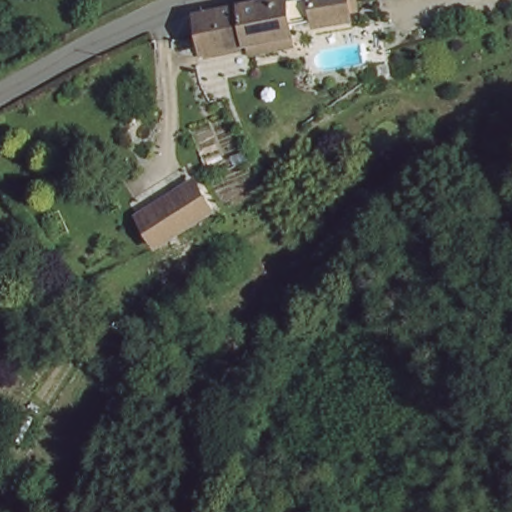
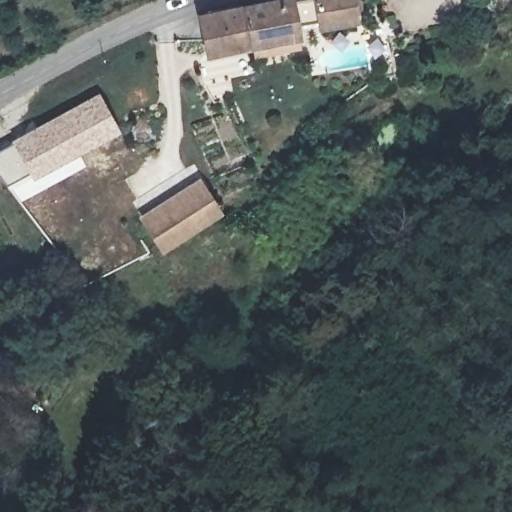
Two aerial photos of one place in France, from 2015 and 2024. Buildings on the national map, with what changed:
unchanged [(256,52),(255,38),(206,45),(203,8),(259,1),(266,0),(350,0),(351,22),(301,32),(302,49),(256,52)]
new [(39,189),(38,190),(31,179),(29,175),(11,186),(0,174),(0,147),(25,132),(98,91),(120,132),(79,153),(86,167),(40,191),(39,189)]
unchanged [(222,211),(158,245),(155,237),(144,212),(208,183),(216,202),(222,211)]

